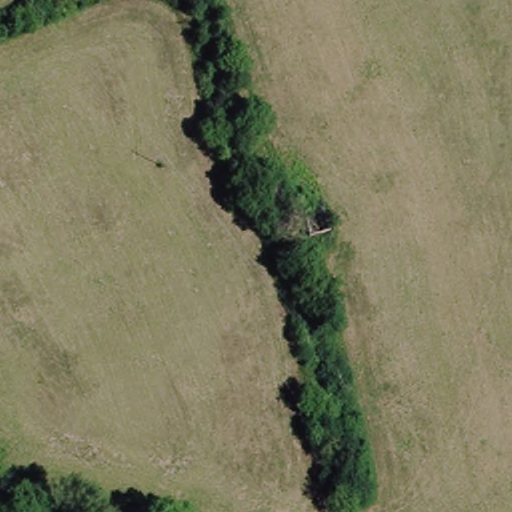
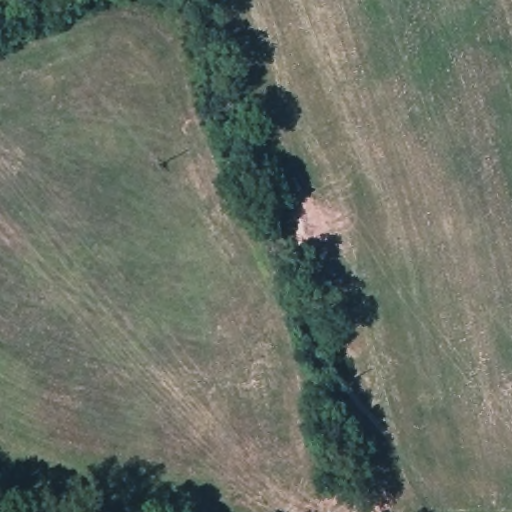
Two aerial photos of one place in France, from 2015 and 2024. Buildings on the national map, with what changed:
unchanged [(301,217),(322,209),(326,230),(311,236),(301,217)]

